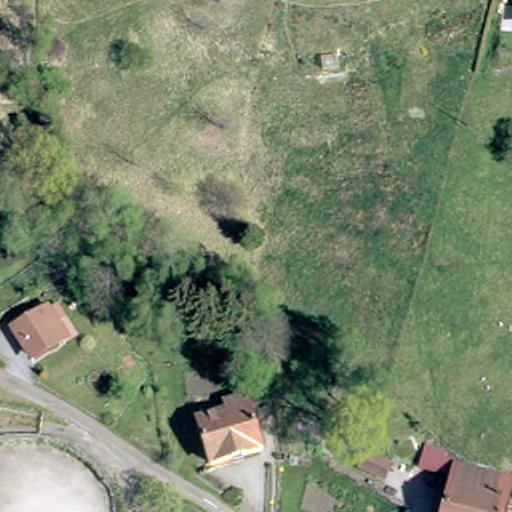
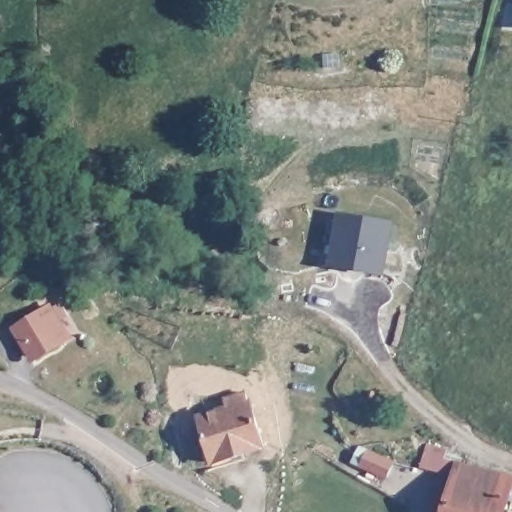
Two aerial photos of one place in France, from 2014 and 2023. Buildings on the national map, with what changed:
new [(336,212),(393,222),(384,277),(328,267),(336,212)]
unchanged [(62,321),(55,325),(63,338),(37,355),(21,327),(53,309),(62,321)]
unchanged [(255,403),(267,450),(214,463),(203,419),(229,412),(227,402),(248,396),(250,405),(255,403)]
unchanged [(432,512),(435,496),(449,498),(454,477),(423,470),(428,447),(441,447),(438,457),(455,461),(455,474),(512,487),(505,512),(432,512)]
unchanged [(393,470),(386,485),(361,473),(367,458),(393,470)]

